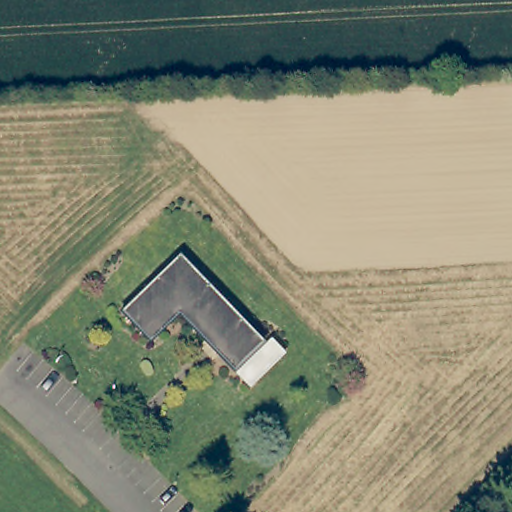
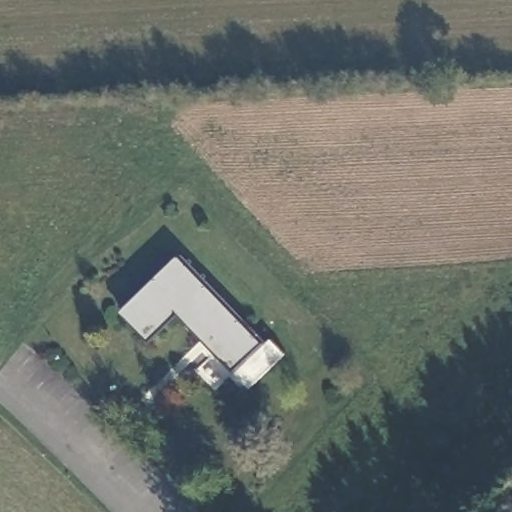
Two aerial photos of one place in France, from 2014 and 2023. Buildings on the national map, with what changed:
unchanged [(263,342),(233,371),(180,315),(150,342),(120,311),(179,254),(263,342)]

